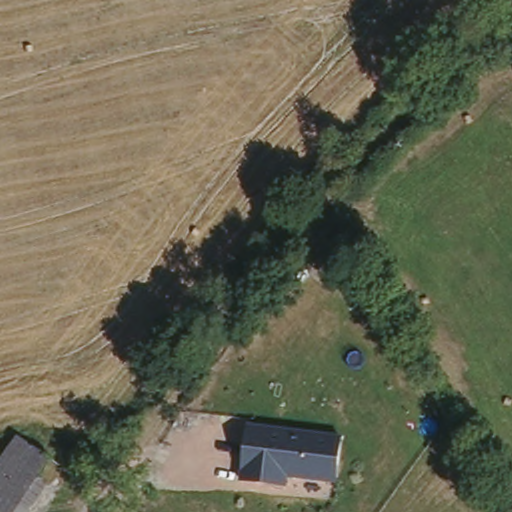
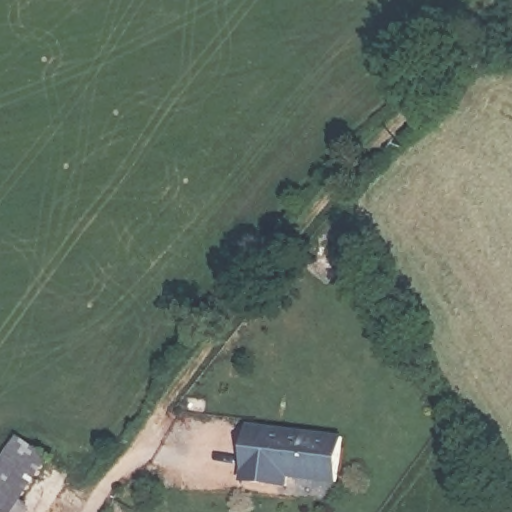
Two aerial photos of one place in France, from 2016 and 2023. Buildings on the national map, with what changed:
unchanged [(246,423),(344,435),(339,483),(288,478),(286,488),(240,482),(246,423)]
unchanged [(63,470),(33,512),(0,512),(0,481),(26,444),(63,470)]

